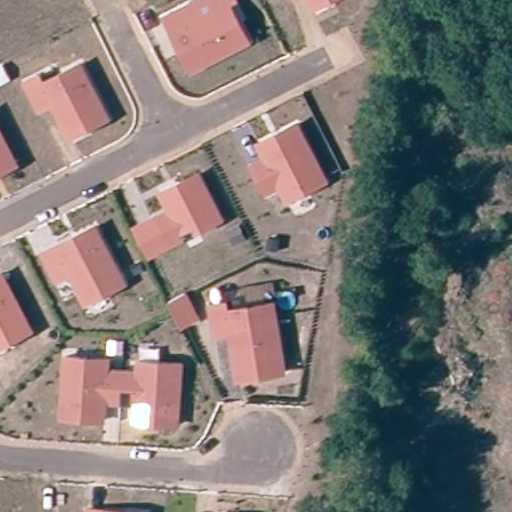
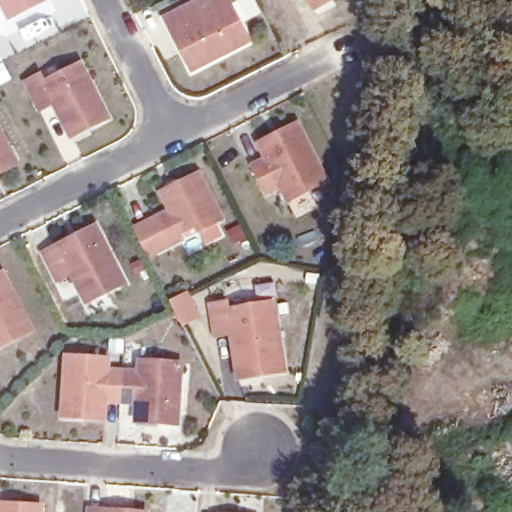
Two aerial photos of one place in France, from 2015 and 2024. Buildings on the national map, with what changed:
new [(0,3),(0,0),(49,0),(9,21),(0,3)]
unchanged [(185,50),(175,30),(169,34),(161,19),(193,3),(199,0),(232,0),(233,0),(226,4),(246,43),(188,72),(178,53),(185,50)]
unchanged [(325,0),(315,5),(312,0),(325,0)]
unchanged [(55,99),(41,106),(27,79),(41,73),(44,79),(81,59),(110,114),(90,124),(72,134),(70,129),(55,99)]
unchanged [(293,115),(326,180),(287,200),(280,185),(265,193),(251,164),(265,158),(261,149),(258,142),(278,132),(274,125),(293,115)]
unchanged [(0,172),(0,138),(14,165),(0,172)]
unchanged [(222,215),(199,227),(196,220),(182,228),(186,234),(170,241),(156,214),(171,207),(165,196),(162,189),(180,180),(200,170),(222,215)]
unchanged [(170,241),(183,235),(186,242),(149,260),(131,227),(156,214),(170,241)]
unchanged [(125,280),(86,299),(71,269),(58,277),(44,249),(59,241),(78,232),(96,222),(125,280)]
unchanged [(0,348),(0,271),(4,269),(35,331),(0,348)]
unchanged [(202,319),(183,329),(168,302),(188,292),(202,319)]
unchanged [(237,368),(231,329),(215,331),(210,300),(227,298),(228,305),(274,299),(284,368),(261,372),(238,374),(237,368)]
unchanged [(62,418),(66,357),(108,359),(107,371),(123,372),(122,386),(121,404),(105,403),(104,417),(104,421),(84,419),(62,418)]
unchanged [(136,419),(136,404),(121,404),(122,386),(123,372),(139,373),(140,361),(182,364),(177,426),(156,424),(135,423),(136,419)]
new [(43,512),(0,512),(0,501),(44,504),(43,512)]
unchanged [(116,512),(89,512),(89,510),(106,512),(116,512)]

